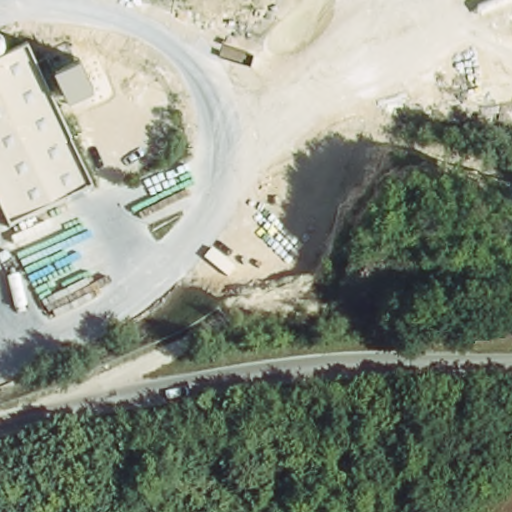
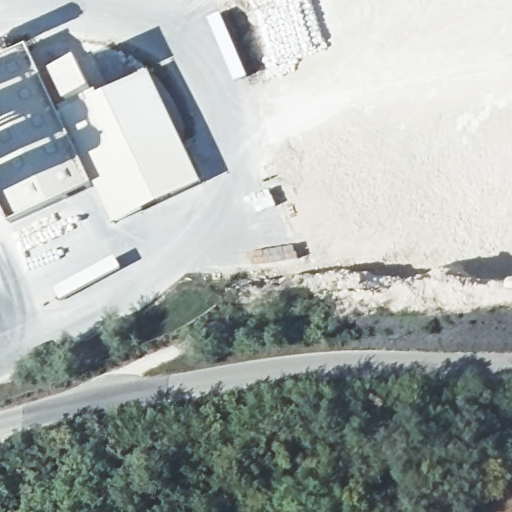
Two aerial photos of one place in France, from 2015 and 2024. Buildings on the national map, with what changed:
unchanged [(0,199),(0,60),(25,47),(93,189),(12,224),(0,199)]
unchanged [(70,106),(55,75),(47,62),(76,48),(87,63),(97,58),(109,82),(94,92),(70,106)]
new [(94,92),(98,96),(149,72),(201,184),(109,224),(93,189),(56,111),(70,106),(94,92)]

